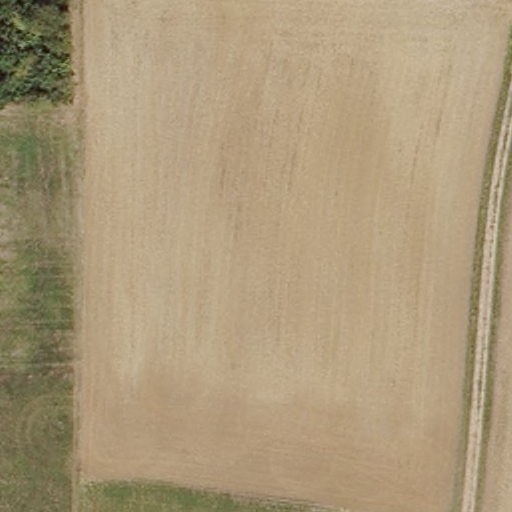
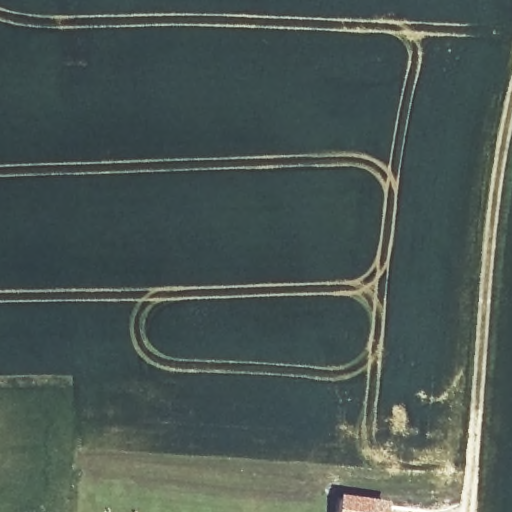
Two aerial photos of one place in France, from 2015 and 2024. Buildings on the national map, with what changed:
new [(338,494),(387,502),(386,512),(336,512),(338,494)]

